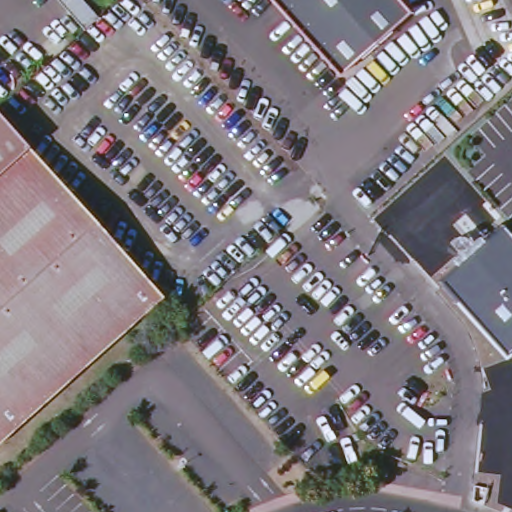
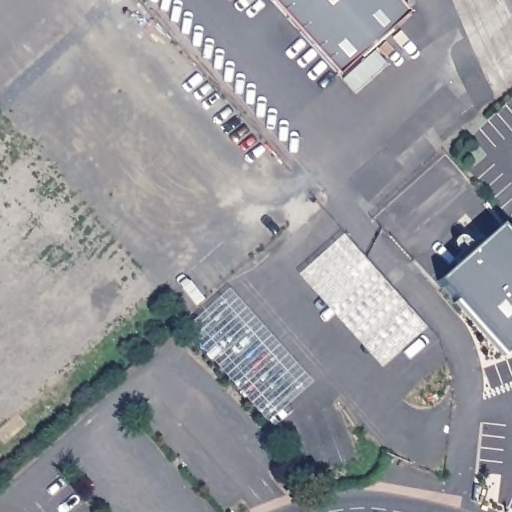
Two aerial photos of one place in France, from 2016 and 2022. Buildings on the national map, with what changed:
unchanged [(413,10),(345,77),(272,0),(404,0),(413,10)]
demolished [(162,298),(0,442),(0,117),(162,298)]
unchanged [(512,348),(505,354),(439,282),(500,228),(512,242),(512,348)]

